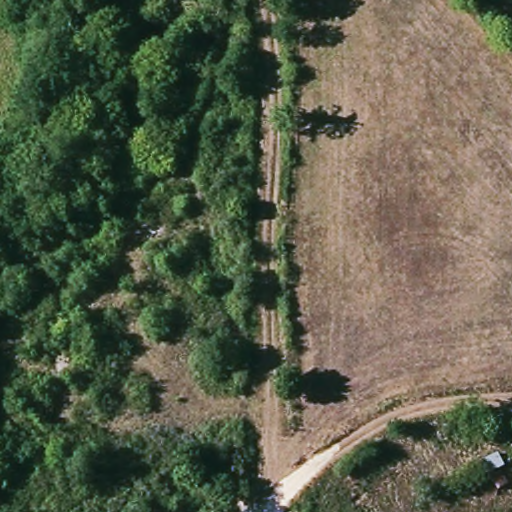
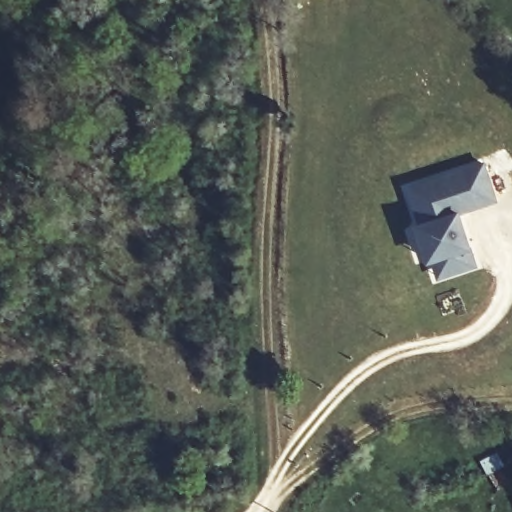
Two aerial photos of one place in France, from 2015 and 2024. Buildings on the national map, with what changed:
new [(485,161),(498,201),(464,212),(474,250),(479,268),(437,283),(432,263),(427,265),(414,224),(418,222),(407,187),(485,161)]

